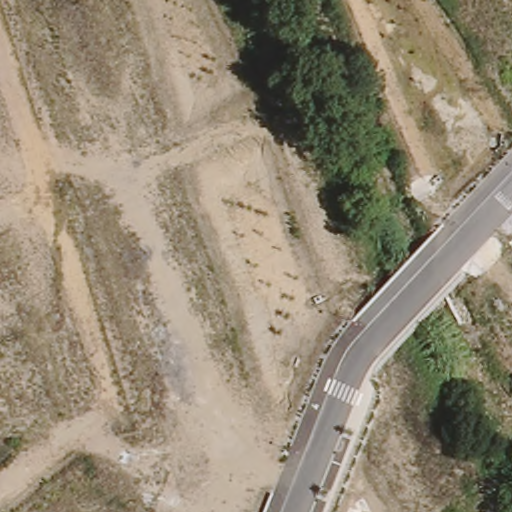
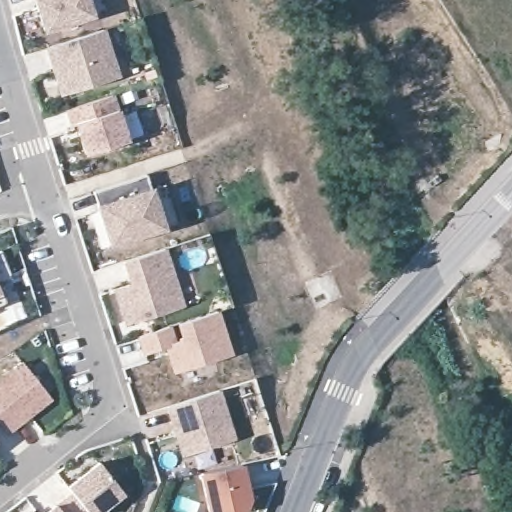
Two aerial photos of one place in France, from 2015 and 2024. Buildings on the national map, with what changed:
new [(92,15),(45,30),(35,0),(87,0),(92,15)]
new [(102,30),(117,76),(62,94),(47,47),(102,30)]
new [(111,95),(126,141),(85,154),(76,124),(71,125),(66,110),(111,95)]
new [(145,175),(162,228),(110,245),(92,192),(145,175)]
new [(129,276),(124,261),(164,249),(182,306),(126,325),(115,289),(131,283),(129,276)]
new [(10,275),(0,279),(0,253),(10,275)]
new [(2,306),(0,307),(0,301),(2,306)]
new [(169,326),(174,342),(183,339),(178,323),(216,311),(230,355),(175,372),(166,347),(145,354),(139,336),(169,326)]
new [(23,363),(50,398),(7,432),(0,422),(0,381),(23,363)]
new [(218,390),(234,439),(183,455),(167,406),(218,390)]
new [(67,487),(99,462),(122,492),(98,512),(61,512),(56,506),(72,493),(67,487)]
new [(241,465),(248,499),(242,506),(197,508),(195,505),(193,475),(241,465)]
new [(56,506),(61,512),(48,512),(56,505),(56,506)]
new [(32,512),(31,512),(32,511),(32,512)]

